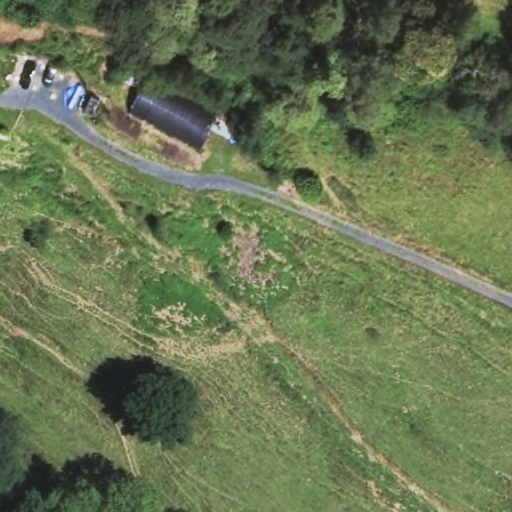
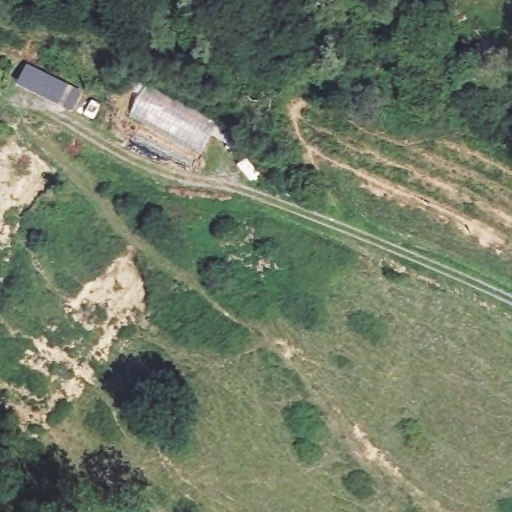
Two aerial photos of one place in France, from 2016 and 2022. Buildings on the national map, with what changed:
unchanged [(219,119),(200,150),(133,110),(151,79),(219,119)]

